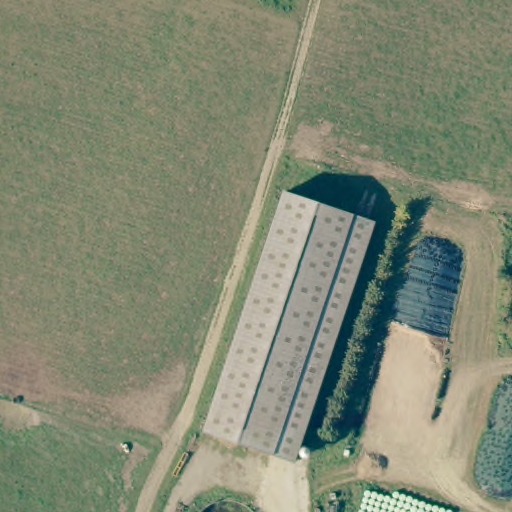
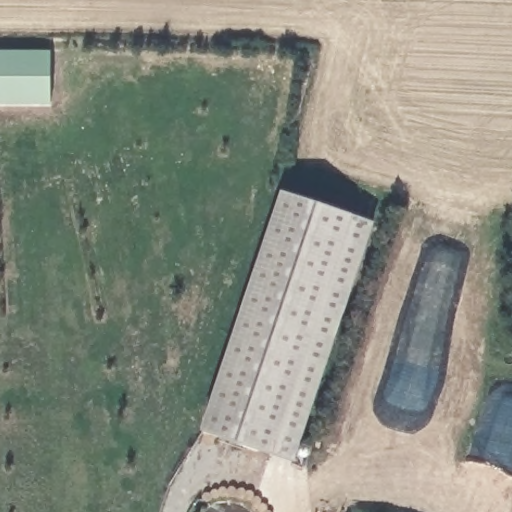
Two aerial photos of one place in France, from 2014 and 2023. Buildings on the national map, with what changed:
new [(50,51),(51,106),(0,106),(0,52),(50,51)]
unchanged [(279,195),(370,224),(293,464),(203,435),(279,195)]

